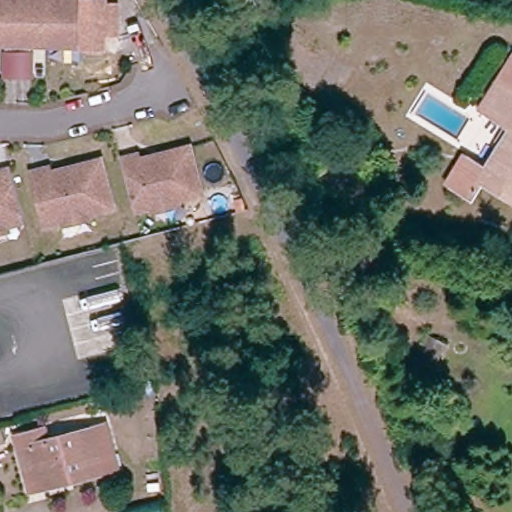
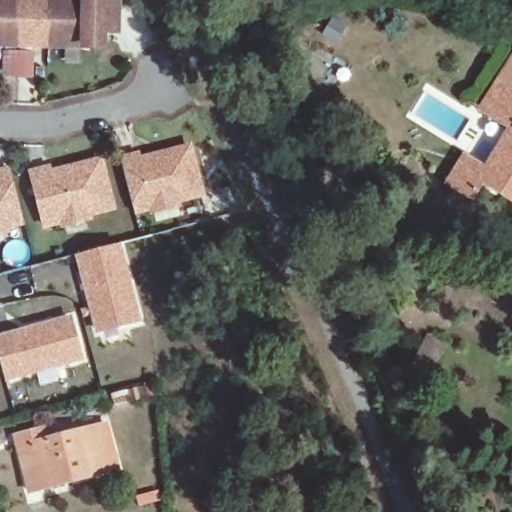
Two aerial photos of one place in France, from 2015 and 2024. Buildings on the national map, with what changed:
unchanged [(22,78),(4,80),(4,50),(0,50),(0,0),(106,0),(104,50),(24,52),(22,78)]
unchanged [(481,103),(512,61),(512,108),(504,118),(481,103)]
unchanged [(499,188),(482,178),(469,195),(444,175),(464,149),(484,163),(501,141),(511,123),(504,118),(512,108),(512,196),(499,188)]
unchanged [(137,155),(138,160),(189,147),(201,194),(134,211),(129,193),(121,159),(137,155)]
unchanged [(48,173),(49,178),(100,165),(112,212),(45,229),(31,177),(48,173)]
unchanged [(18,222),(0,227),(0,171),(5,169),(18,222)]
new [(138,320),(99,332),(77,252),(116,242),(138,320)]
new [(4,379),(0,364),(0,339),(70,320),(82,357),(4,379)]
unchanged [(26,444),(96,425),(109,472),(75,482),(38,491),(36,484),(26,444)]

